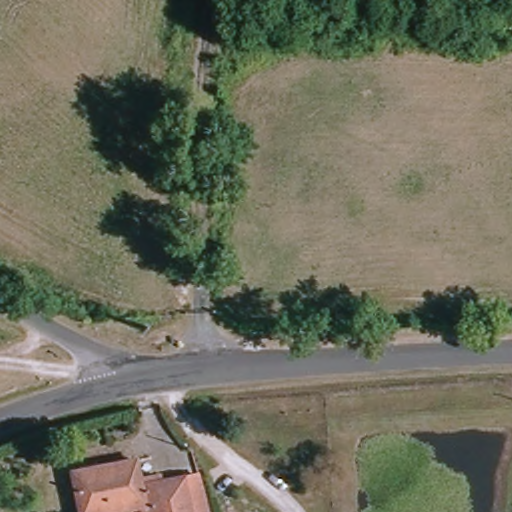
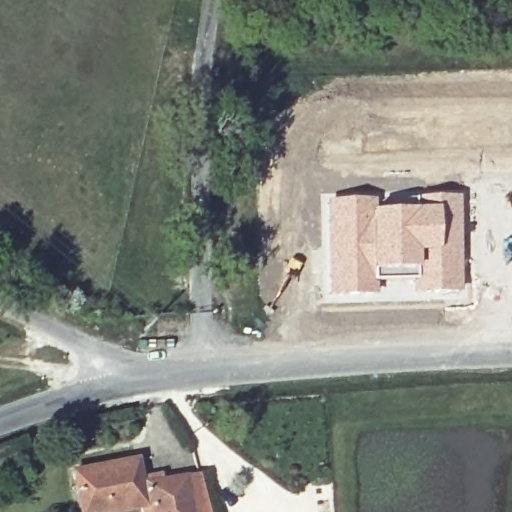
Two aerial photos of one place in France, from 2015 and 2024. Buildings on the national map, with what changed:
new [(416,290),(416,278),(374,281),(376,297),(357,299),(356,292),(332,294),(329,203),(372,202),(372,211),(415,209),(414,200),(456,199),(459,288),(416,290)]
unchanged [(143,500),(83,512),(82,512),(74,469),(134,458),(137,477),(161,472),(163,483),(200,473),(211,512),(145,512),(143,500)]

